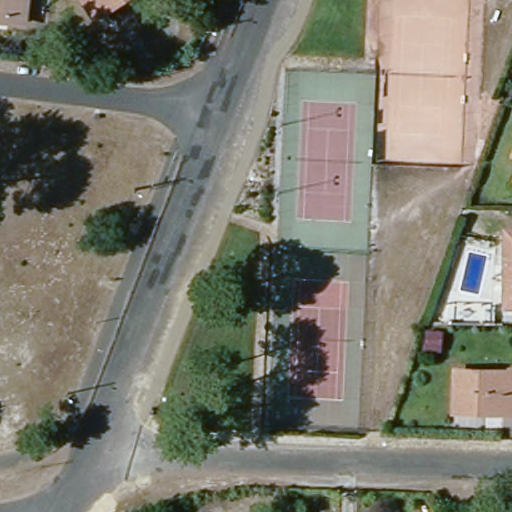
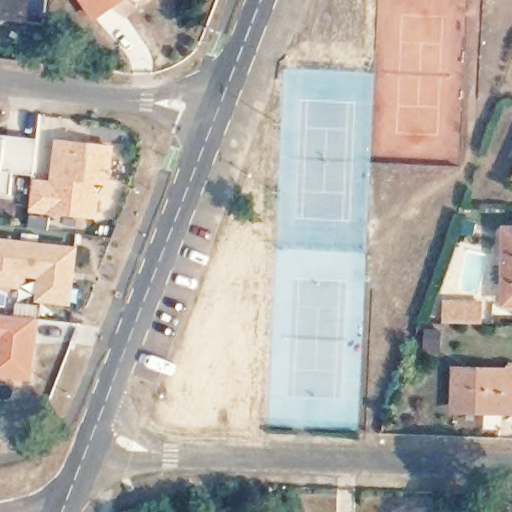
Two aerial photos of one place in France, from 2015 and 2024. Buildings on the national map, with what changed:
unchanged [(0,19),(0,0),(28,0),(25,22),(0,19)]
unchanged [(86,0),(121,0),(96,16),(86,0)]
new [(36,171),(15,168),(12,194),(0,193),(0,135),(40,139),(36,171)]
new [(96,183),(95,194),(102,195),(99,220),(33,213),(36,179),(53,180),(57,140),(116,147),(112,184),(96,183)]
unchanged [(512,234),(512,309),(510,308),(510,233),(512,234)]
new [(73,307),(36,302),(39,279),(24,277),(23,290),(0,287),(0,238),(80,247),(73,307)]
new [(31,378),(0,375),(0,314),(38,318),(31,378)]
unchanged [(502,411),(486,411),(486,406),(452,405),(454,367),(512,370),(512,412),(502,411)]

